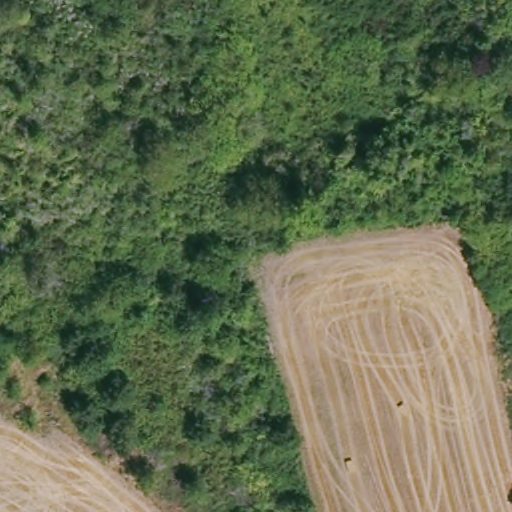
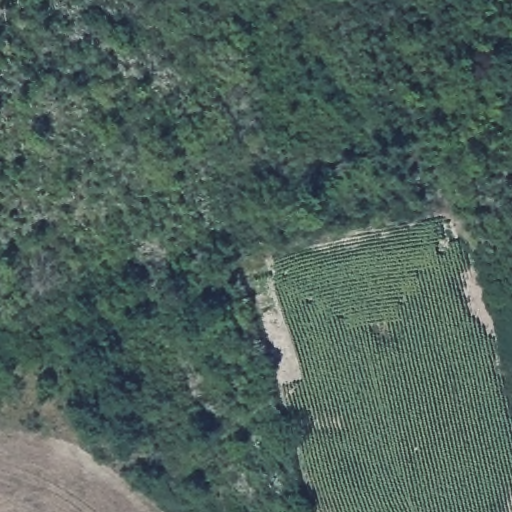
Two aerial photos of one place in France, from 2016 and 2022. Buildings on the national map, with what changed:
unchanged [(13,330),(0,337),(0,313),(4,311),(13,330)]

